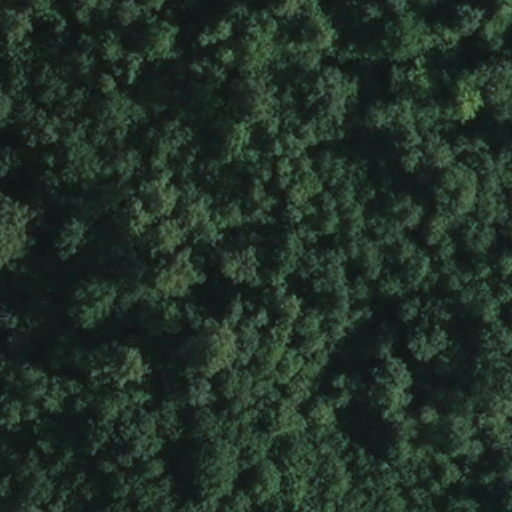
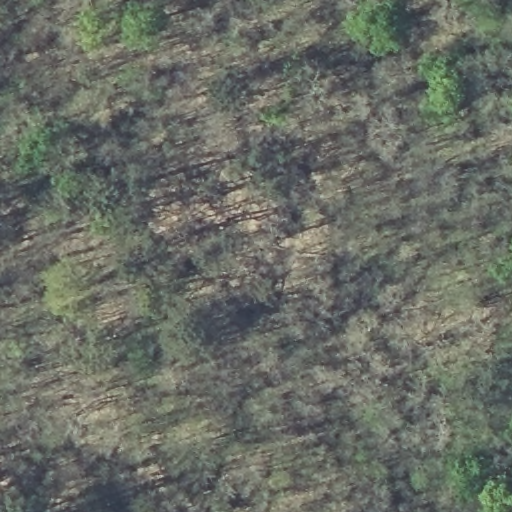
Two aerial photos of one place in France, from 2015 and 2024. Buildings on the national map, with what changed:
[]

